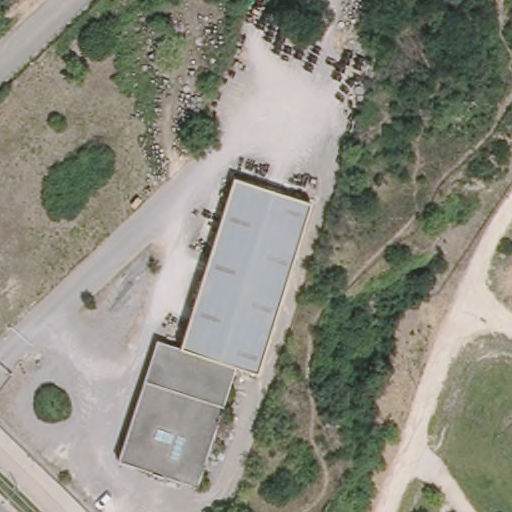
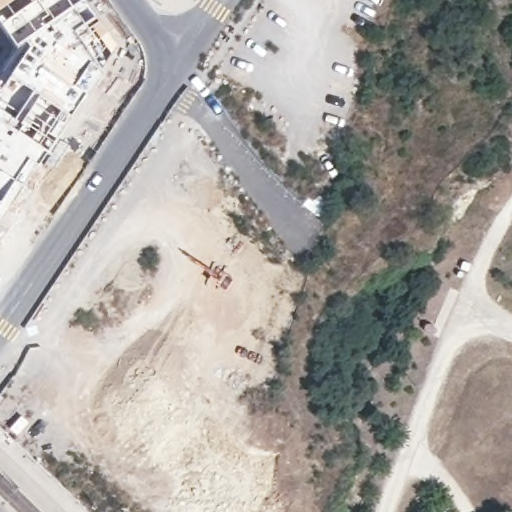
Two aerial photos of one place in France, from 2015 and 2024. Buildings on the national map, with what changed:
new [(0,0),(13,0),(0,9),(0,0)]
new [(11,44),(0,29),(0,9),(13,0),(84,0),(105,33),(101,36),(99,33),(95,36),(105,48),(111,44),(112,48),(99,67),(101,69),(92,84),(68,115),(54,138),(32,168),(0,218),(0,80),(20,52),(11,44)]
demolished [(197,485),(120,461),(136,410),(158,340),(180,347),(234,177),(312,201),(269,337),(259,372),(236,365),(197,485)]

